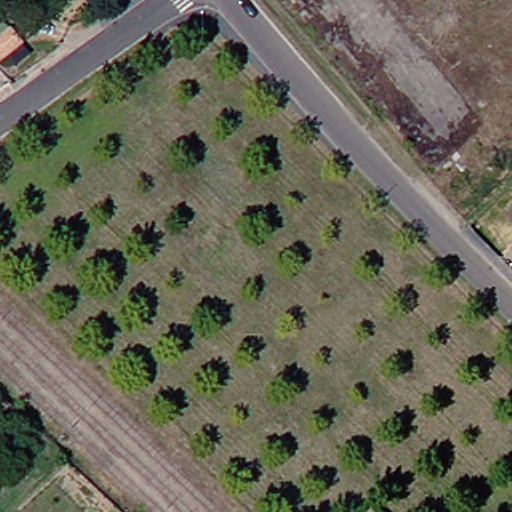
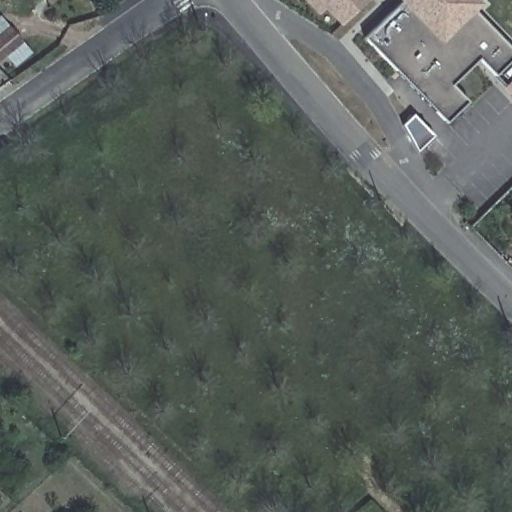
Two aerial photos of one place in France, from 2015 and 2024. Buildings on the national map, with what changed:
demolished [(86,0),(100,16),(87,26),(70,6),(77,0),(86,0)]
new [(329,0),(364,0),(346,18),(329,0)]
new [(457,79),(473,95),(451,117),(370,32),(402,0),(483,0),(479,4),(512,37),(512,58),(500,70),(484,54),(457,79)]
new [(494,75),(512,58),(512,95),(502,85),(494,75)]
demolished [(512,221),(509,219),(512,215),(512,221)]

